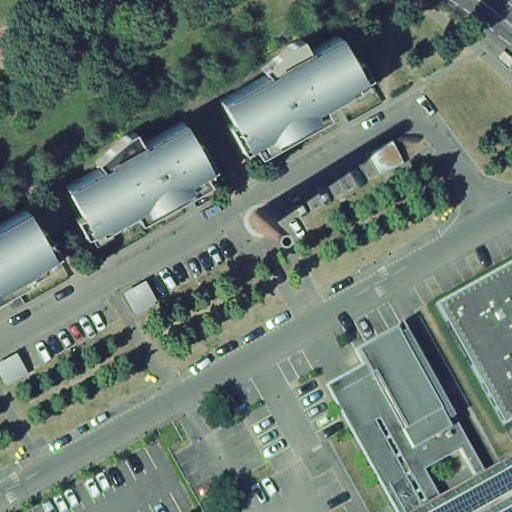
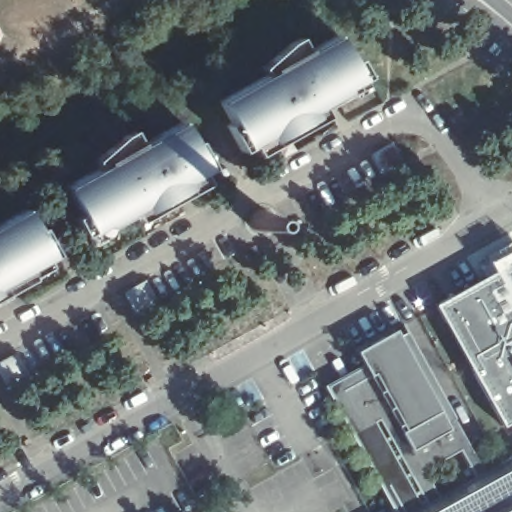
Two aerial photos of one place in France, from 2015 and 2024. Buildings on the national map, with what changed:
unchanged [(255,141),(227,156),(212,130),(217,127),(205,105),(258,75),(253,66),(274,48),(284,42),(292,57),(322,40),(338,67),(343,65),(353,82),(339,90),(341,95),(297,120),(301,128),(272,144),(260,150),(255,141)]
unchanged [(159,210),(129,226),(125,218),(80,243),(78,239),(64,246),(54,228),(61,225),(45,196),(87,174),(82,165),(103,146),(113,140),(121,155),(162,131),(174,154),(178,151),(193,179),(165,194),(170,203),(159,210)]
unchanged [(393,144),(402,161),(381,174),(371,156),(393,144)]
unchanged [(6,214),(18,235),(22,233),(37,260),(9,276),(10,278),(13,284),(0,291),(0,217),(6,214)]
unchanged [(503,425),(434,303),(512,260),(512,420),(503,425)]
unchanged [(147,282),(157,300),(135,311),(125,294),(147,282)]
unchanged [(402,323),(482,465),(400,512),(395,512),(325,383),(364,363),(358,348),(402,323)]
unchanged [(18,354),(28,371),(6,384),(0,374),(0,364),(18,354)]
unchanged [(512,456),(512,493),(496,465),(512,456)]
unchanged [(512,493),(512,512),(411,512),(448,491),(496,465),(512,493)]

